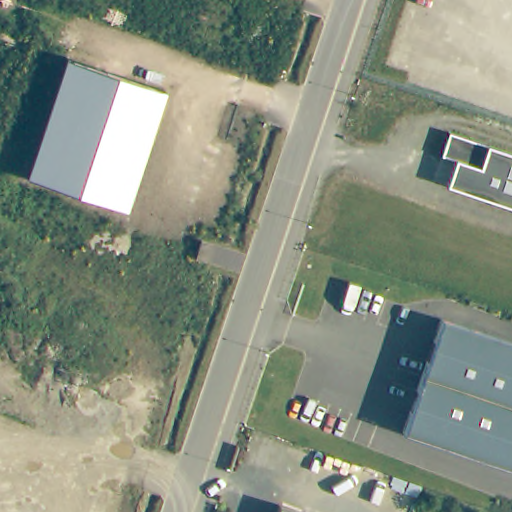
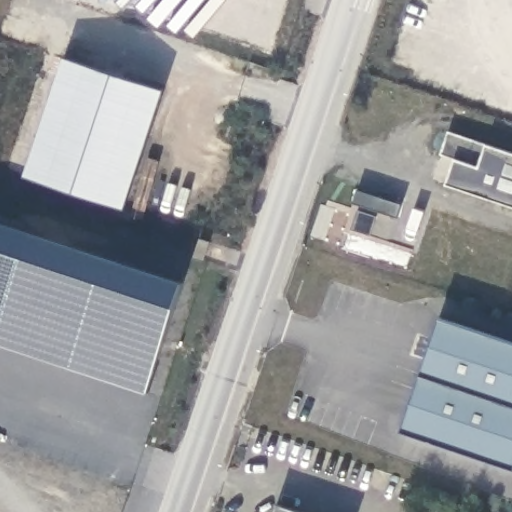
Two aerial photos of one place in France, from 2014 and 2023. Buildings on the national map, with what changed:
unchanged [(64,53),(163,87),(122,207),(24,174),(64,53)]
unchanged [(452,156),(438,151),(446,128),(512,151),(512,205),(444,182),(452,156)]
new [(147,393),(0,347),(0,322),(31,231),(184,281),(147,393)]
unchanged [(201,257),(192,254),(198,237),(207,240),(201,257)]
unchanged [(512,468),(400,431),(437,317),(512,342),(512,468)]
unchanged [(272,512),(275,501),(307,512),(272,512)]

